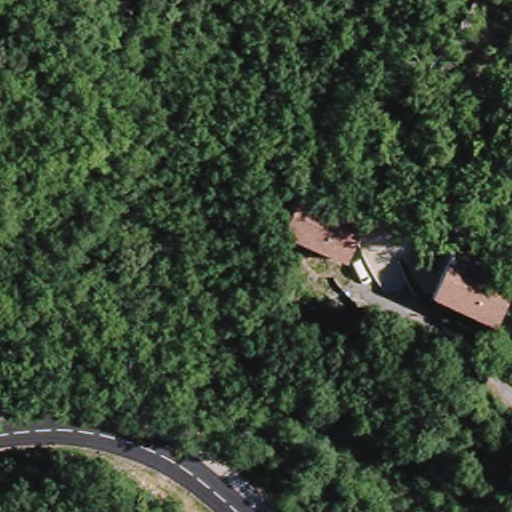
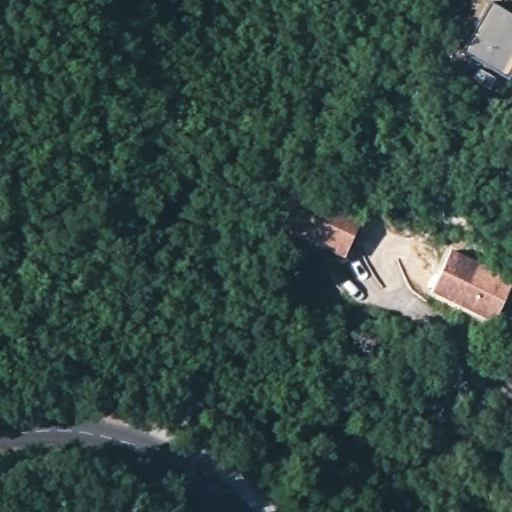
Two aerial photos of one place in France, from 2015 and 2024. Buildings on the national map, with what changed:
new [(489,5),(512,17),(512,71),(508,78),(462,52),(489,5)]
unchanged [(337,255),(281,236),(296,192),(363,215),(353,241),(347,258),(337,255)]
unchanged [(432,293),(449,250),(512,275),(512,282),(505,301),(498,318),(487,315),(432,293)]

